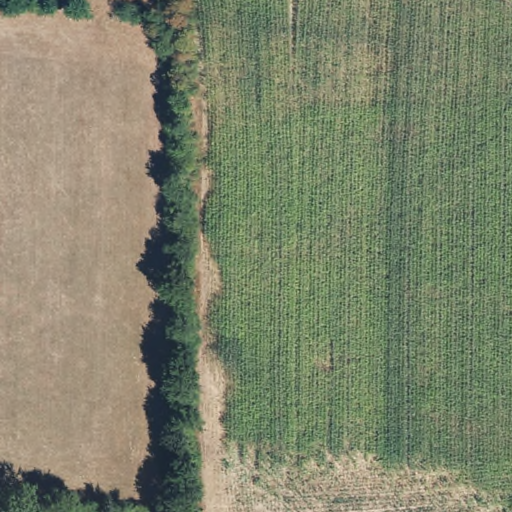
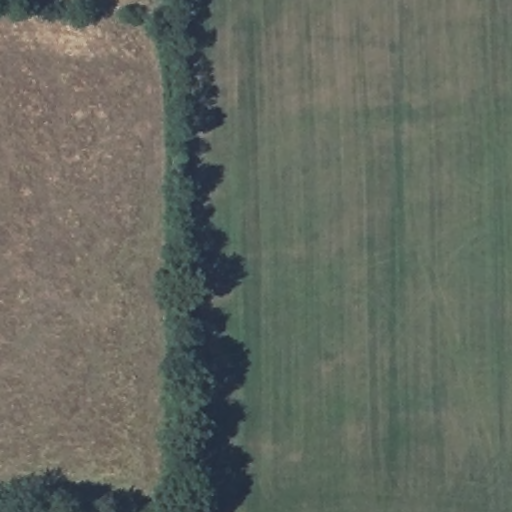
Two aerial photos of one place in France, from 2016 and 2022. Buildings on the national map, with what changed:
[]

